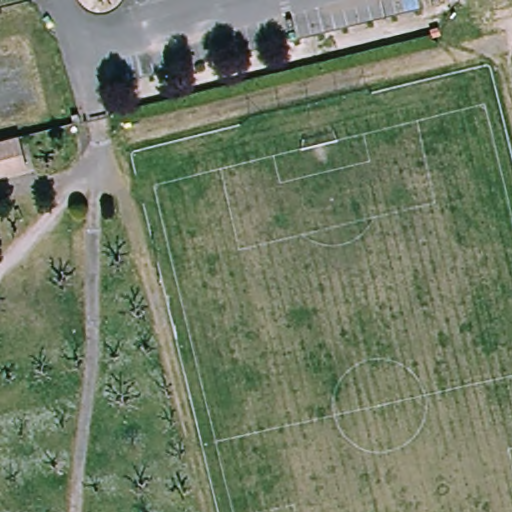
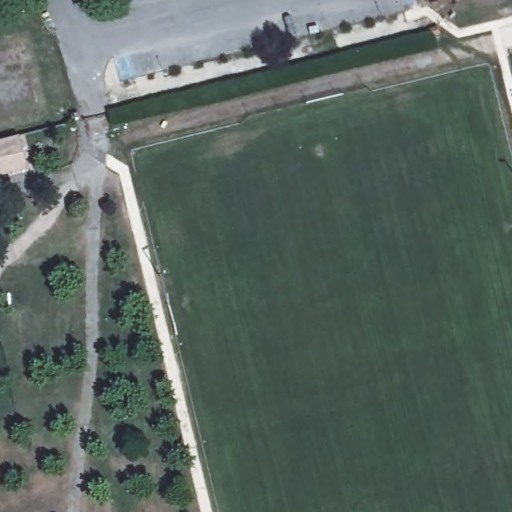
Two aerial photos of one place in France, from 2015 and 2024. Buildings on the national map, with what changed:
unchanged [(33,165),(0,174),(0,140),(25,134),(33,165)]

